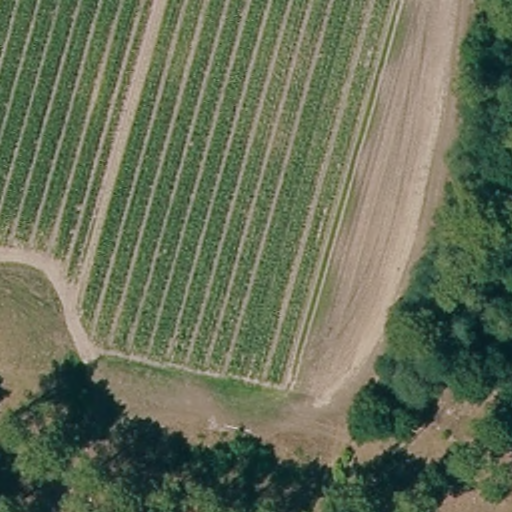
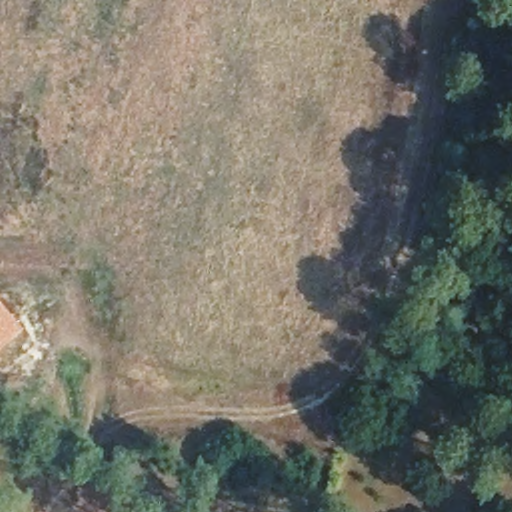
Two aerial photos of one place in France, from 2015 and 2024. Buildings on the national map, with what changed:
new [(23,332),(0,353),(0,303),(23,332)]

